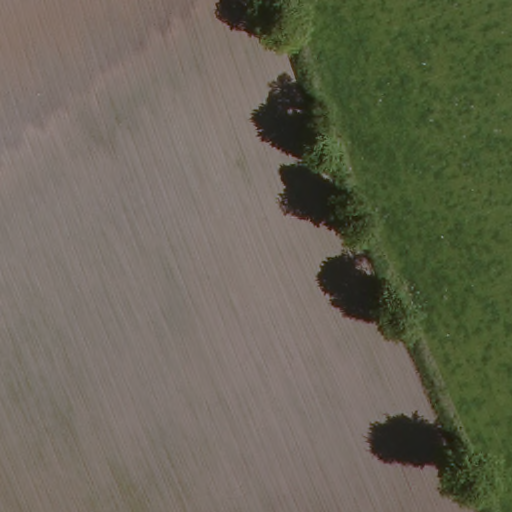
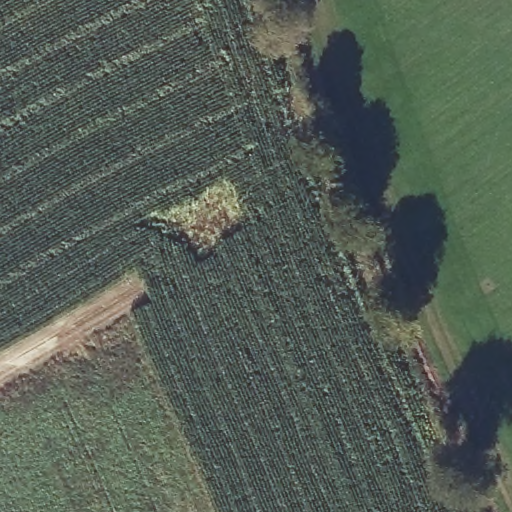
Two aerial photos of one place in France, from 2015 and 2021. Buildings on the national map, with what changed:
[]

